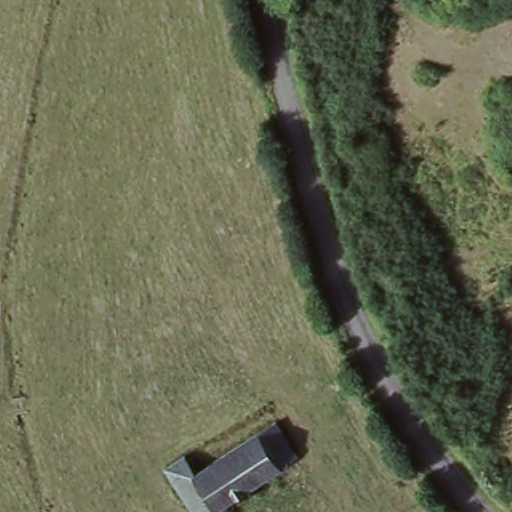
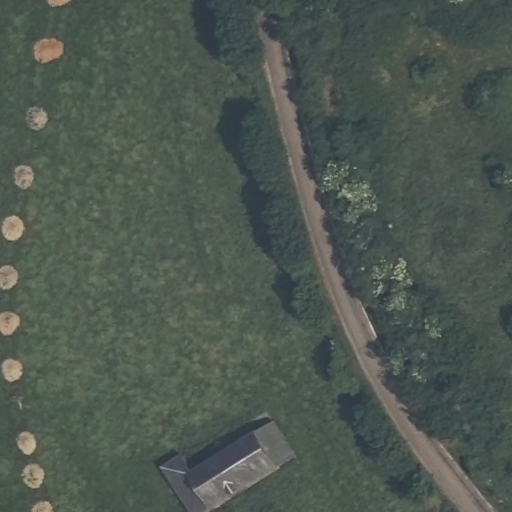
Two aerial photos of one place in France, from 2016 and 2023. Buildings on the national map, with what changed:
unchanged [(283,427),(303,470),(203,512),(192,512),(169,462),(194,450),(201,464),(283,427)]

